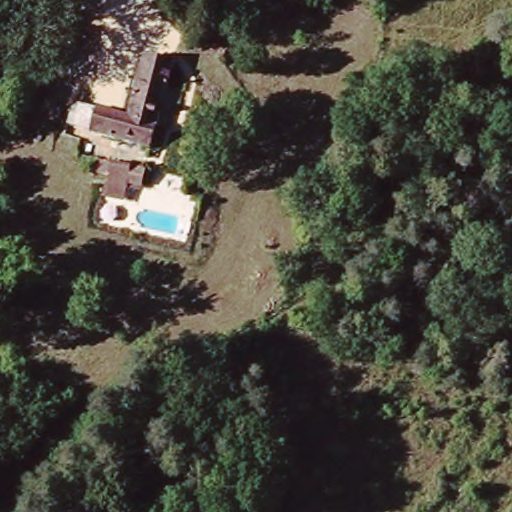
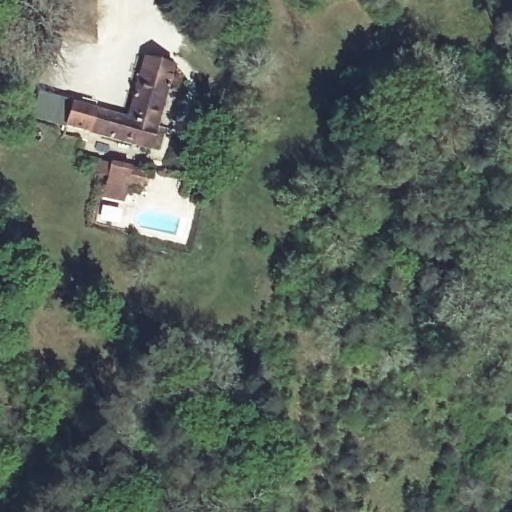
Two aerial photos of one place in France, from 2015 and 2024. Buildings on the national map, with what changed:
unchanged [(87,137),(94,110),(127,117),(140,58),(174,68),(151,157),(87,137)]
unchanged [(100,193),(103,181),(104,173),(98,172),(100,160),(149,170),(145,184),(129,180),(127,186),(124,186),(122,197),(100,193)]

